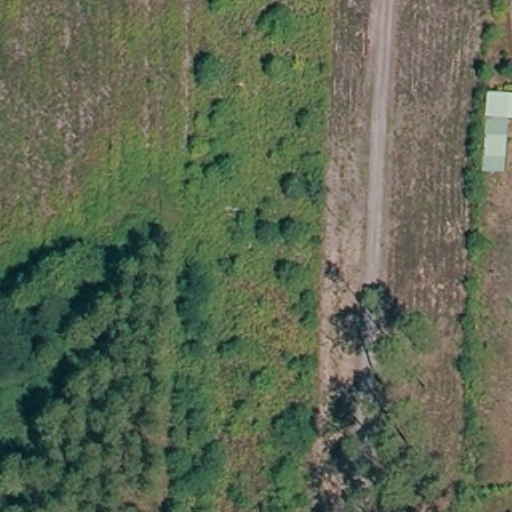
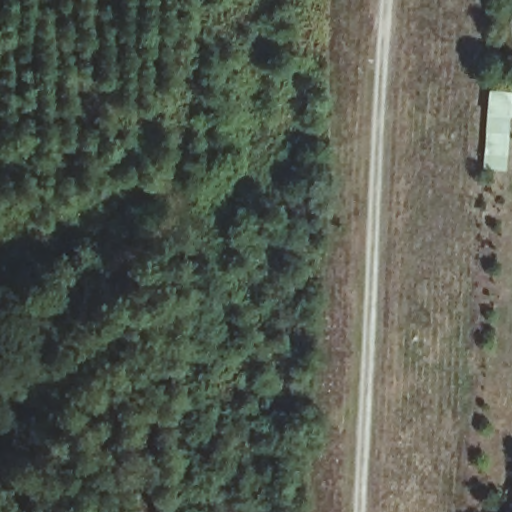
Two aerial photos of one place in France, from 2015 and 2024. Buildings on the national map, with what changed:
unchanged [(488,182),(486,95),(512,92),(512,118),(503,184),(488,182)]

